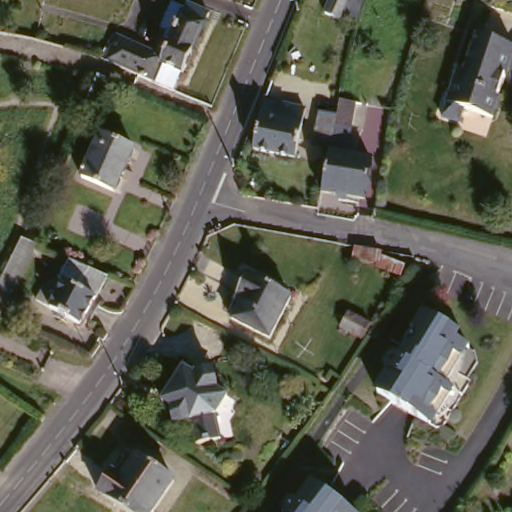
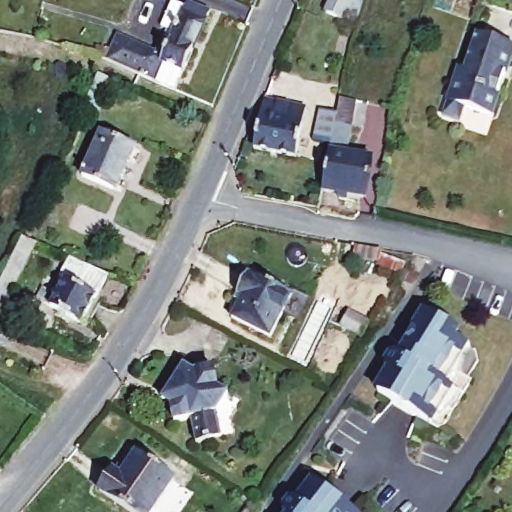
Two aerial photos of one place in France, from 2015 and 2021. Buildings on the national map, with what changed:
unchanged [(325,11),(330,0),(348,0),(340,18),(325,11)]
unchanged [(187,7),(209,16),(184,76),(161,67),(153,85),(103,63),(114,38),(129,45),(158,57),(168,33),(161,30),(171,6),(185,11),(187,7)]
unchanged [(499,99),(492,120),(449,106),(472,35),(512,48),(512,73),(503,101),(499,99)]
unchanged [(111,80),(98,111),(84,105),(97,76),(98,73),(111,80)]
unchanged [(308,113),(297,162),(255,152),(266,103),(308,113)]
unchanged [(358,106),(353,132),(351,131),(347,153),(331,150),(341,105),(358,106)]
unchanged [(116,174),(122,177),(116,192),(82,175),(102,133),(129,146),(116,174)]
unchanged [(373,164),(367,204),(323,197),(330,158),(373,164)]
unchanged [(36,243),(7,297),(1,314),(0,314),(0,282),(22,237),(36,243)]
unchanged [(406,264),(402,274),(377,265),(381,254),(406,264)]
unchanged [(108,286),(82,333),(37,309),(43,298),(57,304),(65,290),(60,287),(70,267),(108,286)]
unchanged [(292,297),(270,339),(232,319),(242,298),(236,294),(247,275),(292,297)]
unchanged [(464,333),(461,338),(482,351),(483,358),(463,392),(465,393),(446,425),(439,427),(368,384),(381,362),(386,361),(391,353),(397,352),(402,343),(395,339),(415,304),(464,333)]
unchanged [(214,375),(221,394),(230,401),(216,420),(223,444),(200,450),(193,426),(177,429),(172,411),(179,409),(178,403),(169,397),(185,372),(194,379),(214,375)]
unchanged [(153,512),(129,512),(100,492),(114,471),(121,477),(138,454),(176,481),(153,512)]
unchanged [(338,512),(275,512),(275,511),(281,504),(277,501),(280,498),(296,478),(338,512)]

